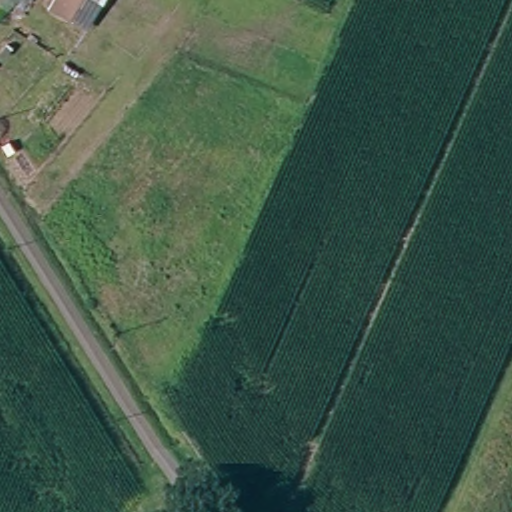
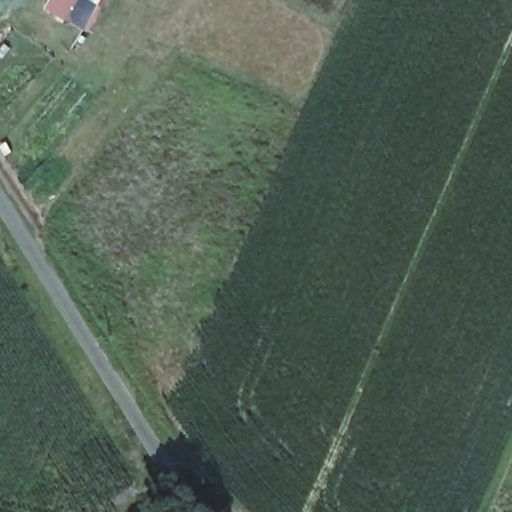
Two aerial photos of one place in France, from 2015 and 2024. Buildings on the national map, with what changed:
unchanged [(89,0),(75,24),(51,9),(57,0),(89,0)]

